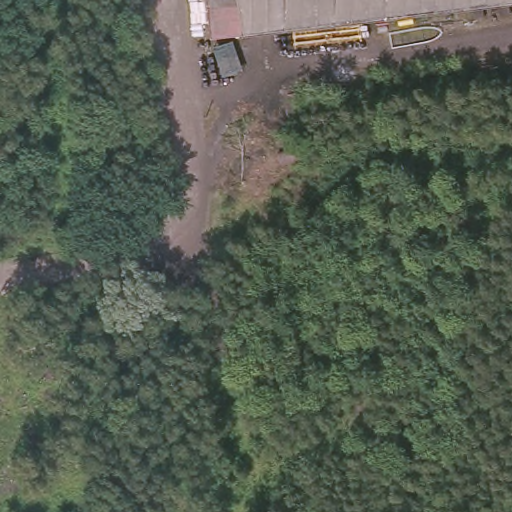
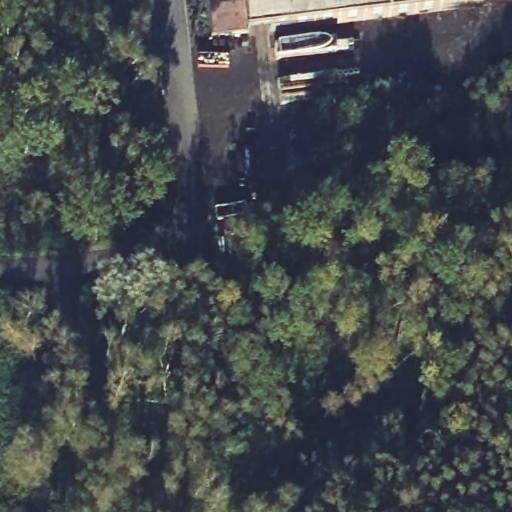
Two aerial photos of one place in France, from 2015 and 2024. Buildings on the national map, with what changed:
unchanged [(512,0),(512,1),(227,34),(224,0),(512,0)]

